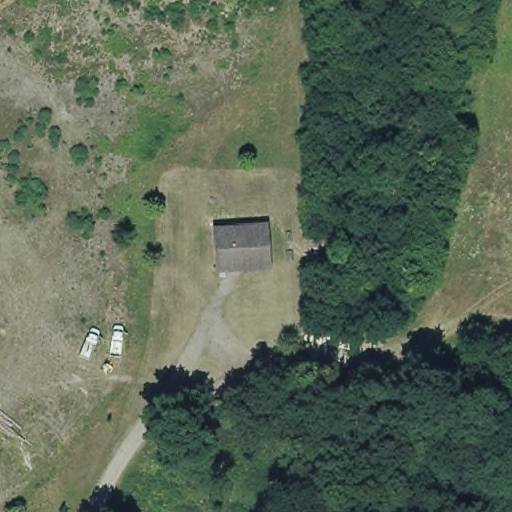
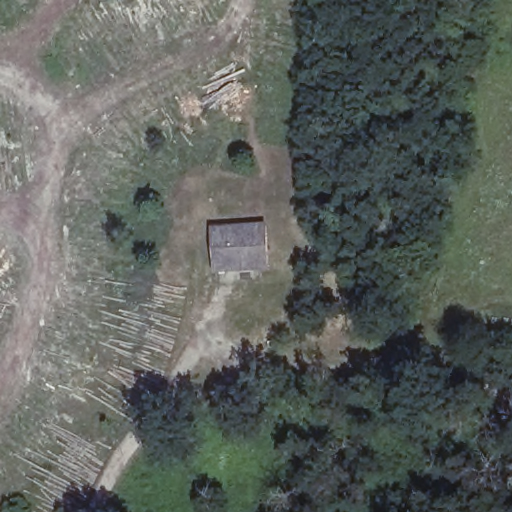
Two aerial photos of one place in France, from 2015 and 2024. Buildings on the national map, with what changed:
unchanged [(272,270),(213,274),(210,227),(267,223),(272,270)]

